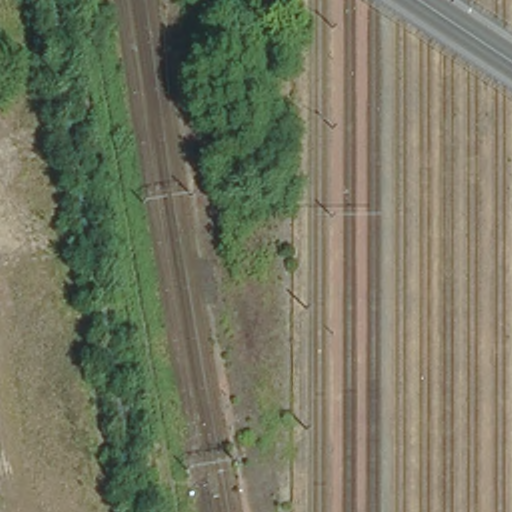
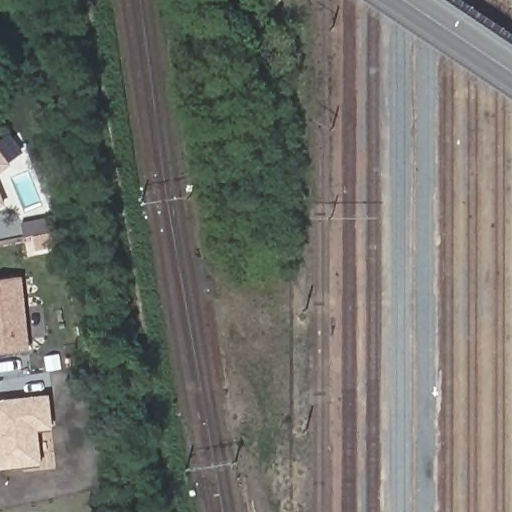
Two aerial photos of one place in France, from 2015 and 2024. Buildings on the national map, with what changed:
new [(0,174),(0,146),(12,163),(0,174)]
new [(9,202),(0,206),(0,185),(9,202)]
new [(36,251),(32,236),(24,238),(20,224),(49,216),(57,245),(36,251)]
new [(18,276),(26,349),(0,352),(0,278),(18,276)]
new [(51,394),(55,428),(40,430),(43,466),(0,470),(0,400),(51,394)]

